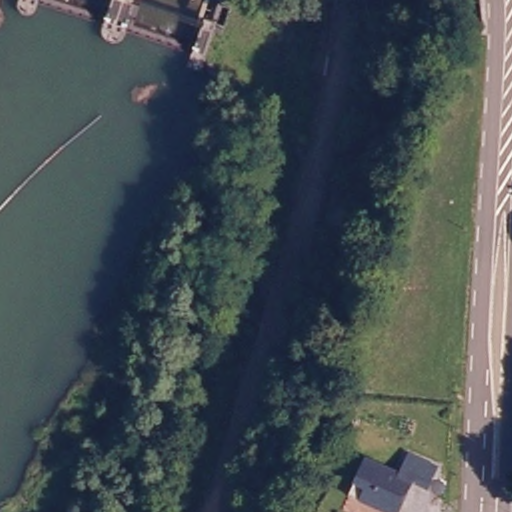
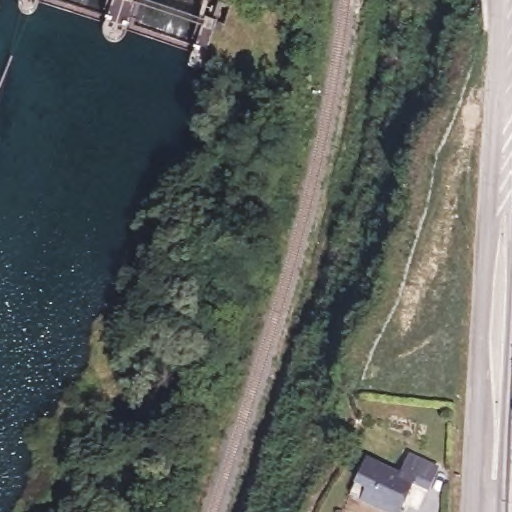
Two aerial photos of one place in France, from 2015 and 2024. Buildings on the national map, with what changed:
unchanged [(359,464),(394,477),(402,456),(431,467),(423,490),(408,484),(398,512),(373,512),(357,507),(346,502),(350,488),(359,464)]

